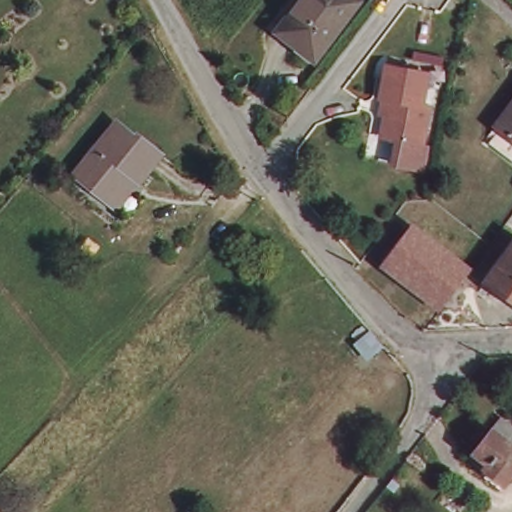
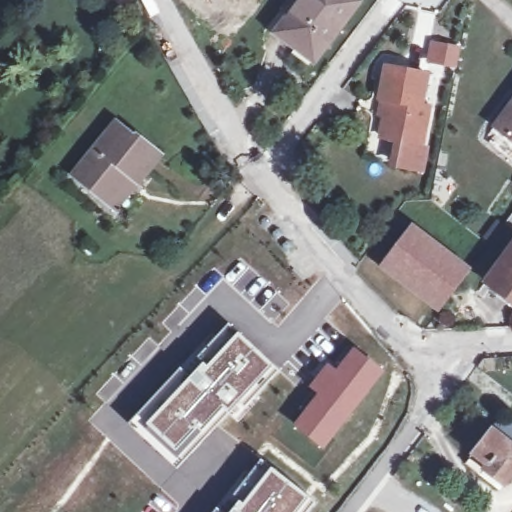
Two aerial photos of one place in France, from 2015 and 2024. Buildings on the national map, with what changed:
unchanged [(312,62),(271,30),(294,0),(349,0),(358,7),(312,62)]
unchanged [(395,160),(400,136),(378,131),(383,110),(376,109),(380,94),(385,62),(427,71),(420,102),(428,103),(421,140),(416,164),(395,160)]
unchanged [(511,100),(512,100),(512,142),(496,129),(491,125),(511,100)]
unchanged [(106,199),(73,172),(115,121),(132,135),(135,131),(160,152),(137,179),(115,206),(106,199)]
unchanged [(435,305),(395,276),(380,265),(404,234),(418,244),(460,274),(435,305)]
unchanged [(500,296),(481,282),(512,244),(512,306),(500,296)]
new [(227,321),(237,330),(280,368),(240,415),(234,410),(178,465),(128,421),(180,365),(195,352),(227,321)]
new [(315,392),(307,385),(327,361),(335,367),(354,345),(385,371),(323,448),(291,423),(315,392)]
unchanged [(498,493),(477,479),(481,473),(466,463),(491,428),(512,443),(512,474),(498,493)]
new [(272,463),(317,500),(307,512),(211,512),(216,504),(230,490),(261,455),(272,463)]

